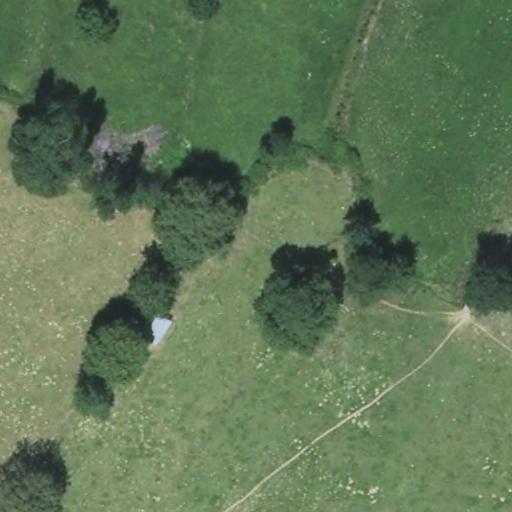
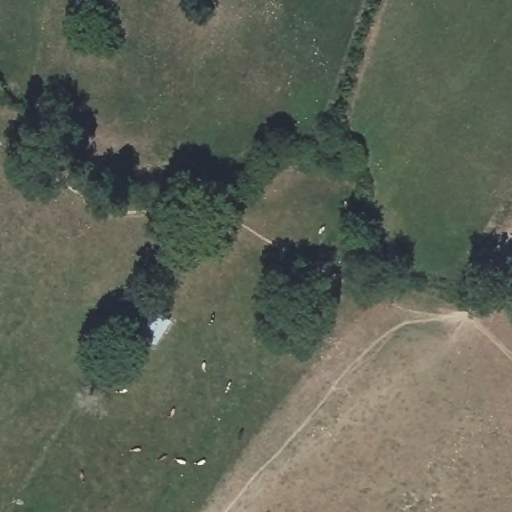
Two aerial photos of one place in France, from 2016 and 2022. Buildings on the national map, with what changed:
unchanged [(178,318),(156,351),(133,338),(155,306),(178,318)]

